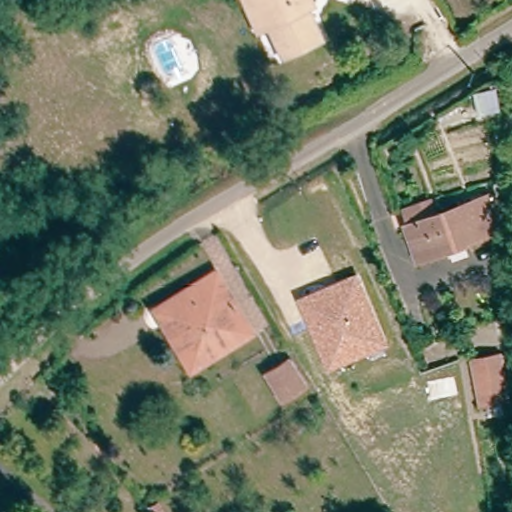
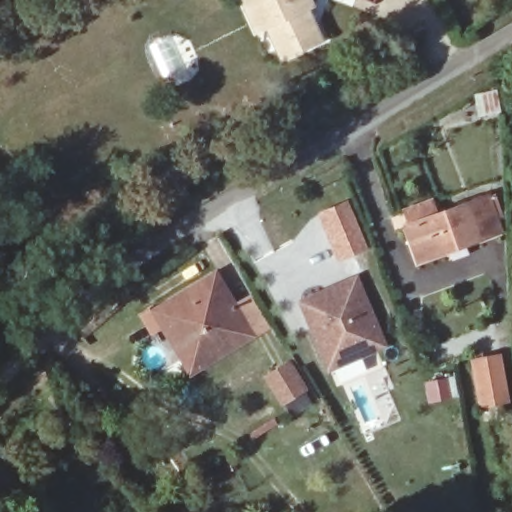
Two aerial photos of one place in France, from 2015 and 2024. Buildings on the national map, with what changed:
unchanged [(315,3),(307,7),(325,37),(290,58),(261,10),(247,17),(236,0),(237,0),(313,0),(315,3)]
new [(317,211),(347,199),(368,249),(337,261),(317,211)]
unchanged [(497,225),(477,232),(479,236),(416,257),(405,222),(469,200),(470,205),(489,199),(497,225)]
unchanged [(357,274),(388,347),(327,372),(297,300),(357,274)]
unchanged [(214,278),(248,339),(185,375),(175,357),(182,353),(157,308),(214,278)]
unchanged [(502,360),(505,404),(477,406),(475,363),(502,360)]
unchanged [(296,373),(310,397),(291,410),(275,386),(296,373)]

